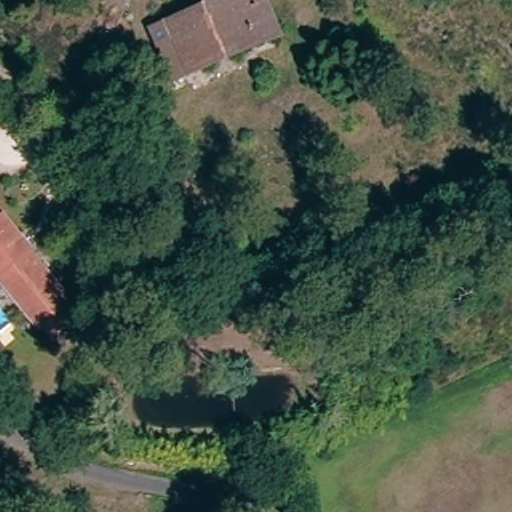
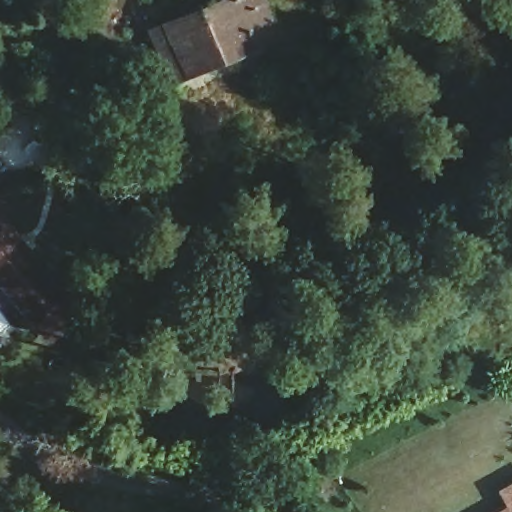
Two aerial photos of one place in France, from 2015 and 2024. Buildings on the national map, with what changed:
unchanged [(233,55),(210,64),(210,67),(189,76),(167,29),(234,0),(259,0),(263,8),(267,16),(247,25),(256,47),(235,56),(233,55)]
unchanged [(43,337),(4,287),(0,283),(0,218),(74,313),(82,323),(51,347),(43,337)]
new [(507,506),(498,489),(512,481),(512,512),(495,512),(507,506)]

